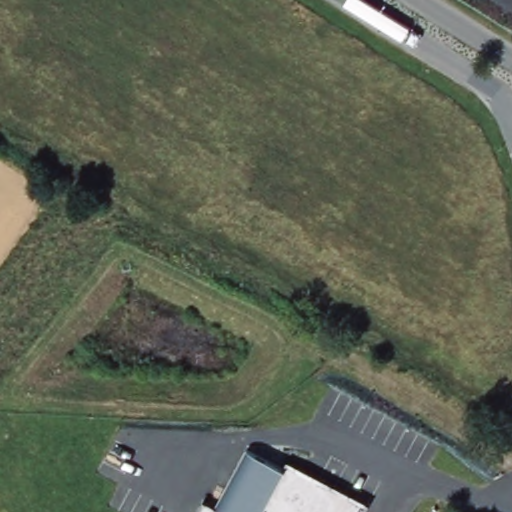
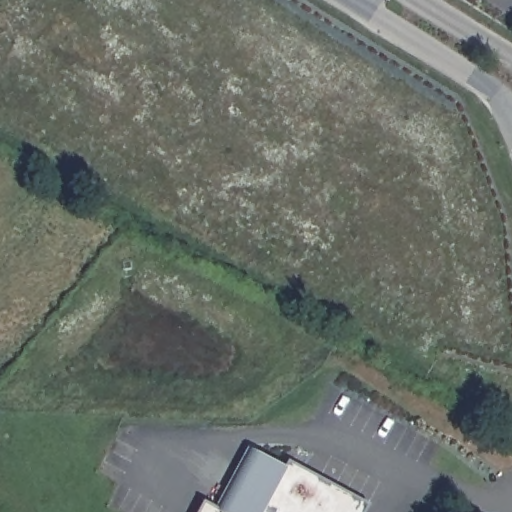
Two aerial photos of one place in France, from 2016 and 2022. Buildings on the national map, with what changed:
unchanged [(201,512),(205,504),(217,511),(249,449),(286,470),(290,463),(368,505),(365,512),(201,512)]

